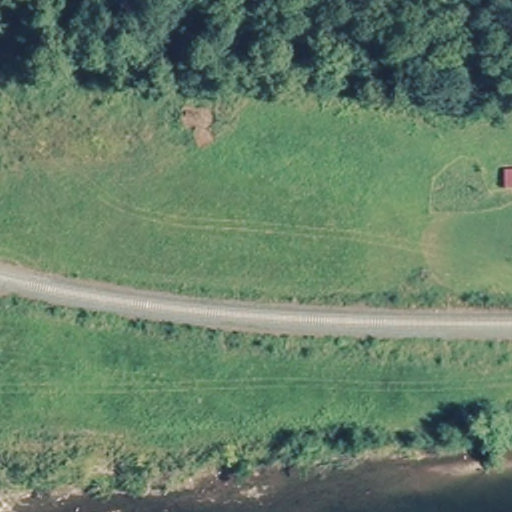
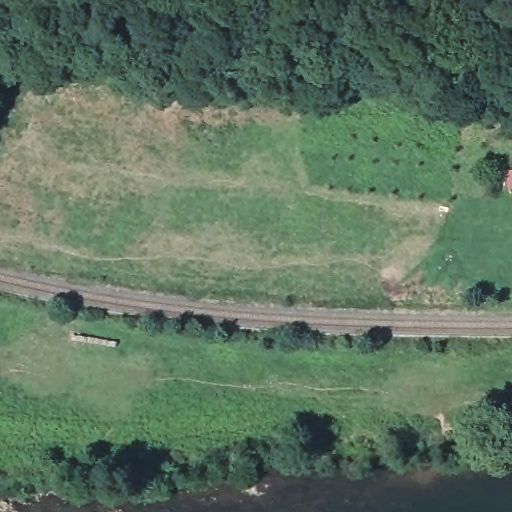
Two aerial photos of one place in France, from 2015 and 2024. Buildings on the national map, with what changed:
[]

